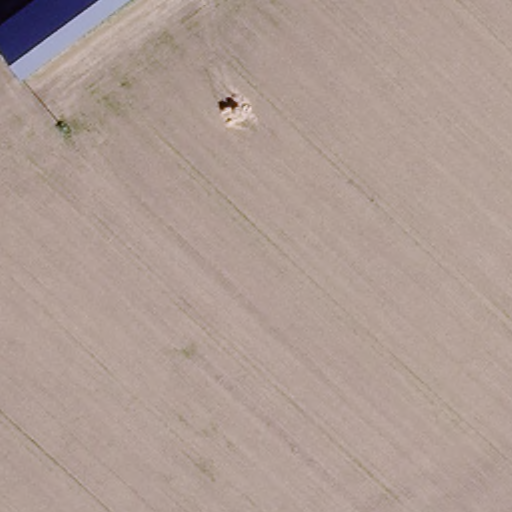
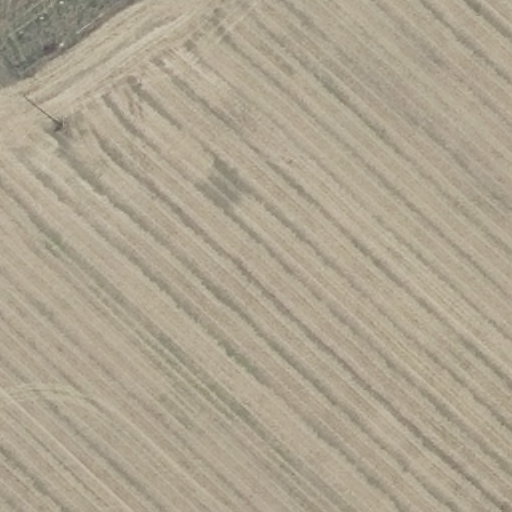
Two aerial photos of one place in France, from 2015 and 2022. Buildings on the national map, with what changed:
demolished [(21,78),(0,52),(0,50),(67,0),(131,0),(21,78)]

